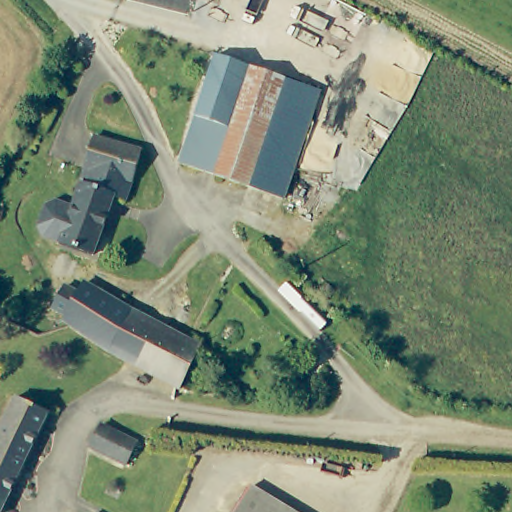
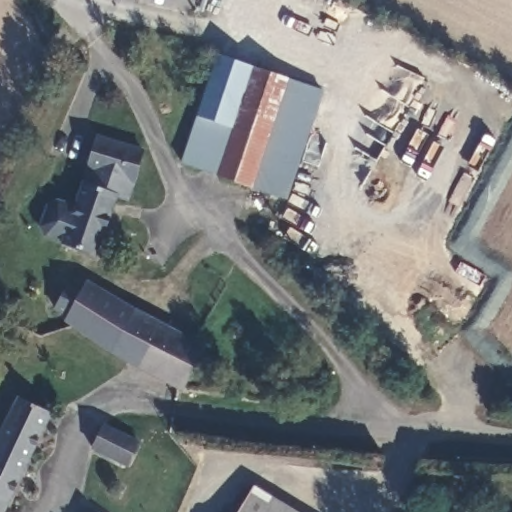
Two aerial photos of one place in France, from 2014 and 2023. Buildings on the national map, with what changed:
unchanged [(215,56),(322,93),(284,201),(214,181),(231,134),(194,121),(215,56)]
unchanged [(184,154),(194,121),(231,134),(214,181),(197,176),(179,171),(184,154)]
unchanged [(142,153),(127,199),(119,196),(99,252),(44,231),(39,219),(47,199),(56,194),(77,202),(99,137),(142,153)]
unchanged [(154,324),(196,345),(202,349),(181,391),(132,368),(71,331),(63,325),(86,283),(154,324)]
unchanged [(49,416),(2,512),(0,512),(0,440),(19,404),(31,408),(49,416)]
unchanged [(139,443),(126,469),(90,451),(104,425),(139,443)]
unchanged [(236,512),(252,485),(300,512),(236,512)]

